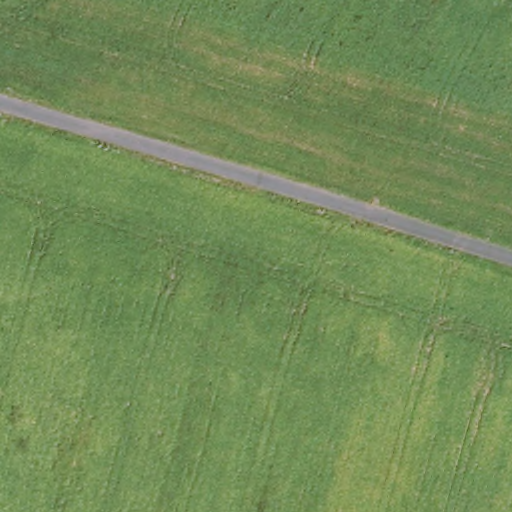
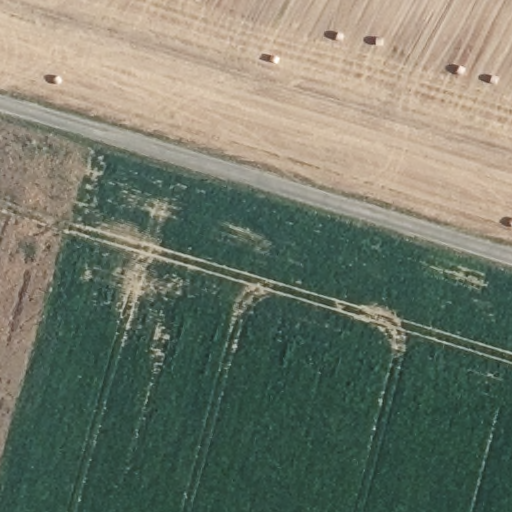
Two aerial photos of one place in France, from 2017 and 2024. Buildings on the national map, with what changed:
[]

